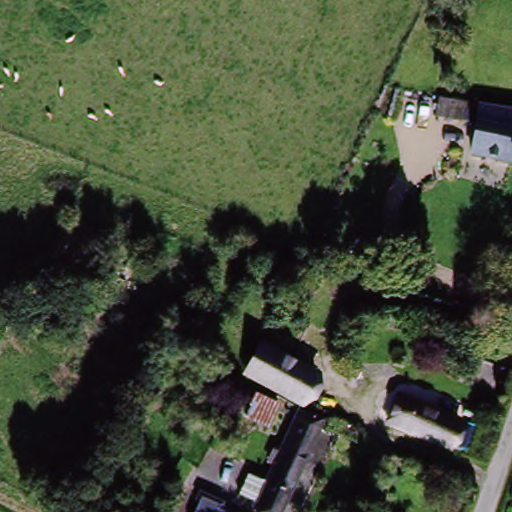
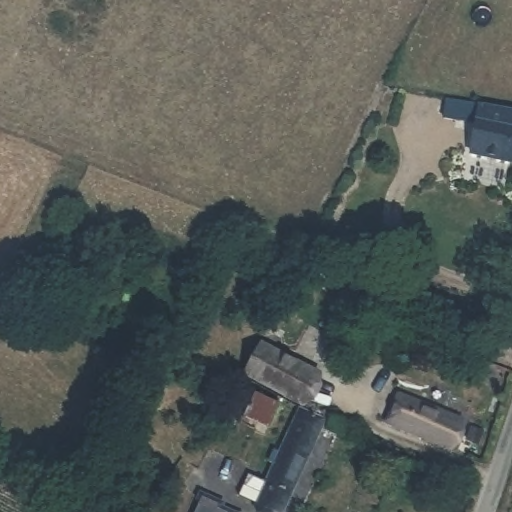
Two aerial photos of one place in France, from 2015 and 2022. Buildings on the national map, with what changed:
unchanged [(466,151),(472,126),(432,115),(438,96),(512,111),(512,164),(466,151)]
unchanged [(243,372),(258,343),(314,375),(299,403),(243,372)]
unchanged [(403,423),(414,401),(479,428),(468,451),(403,423)]
unchanged [(319,440),(280,512),(269,512),(253,502),(253,499),(235,490),(247,470),(264,480),(298,415),(324,430),(319,440)]
unchanged [(214,508),(213,511),(214,512),(191,512),(198,499),(214,508)]

